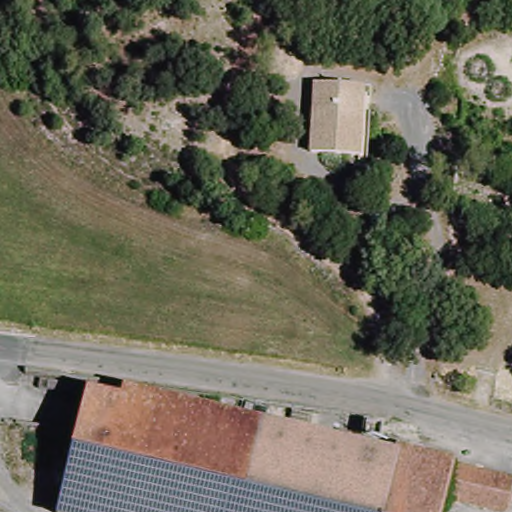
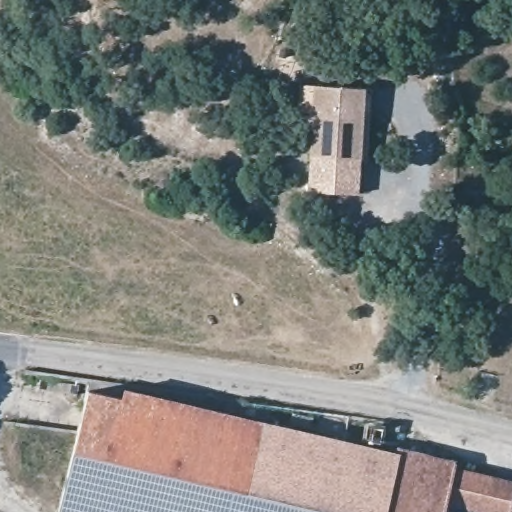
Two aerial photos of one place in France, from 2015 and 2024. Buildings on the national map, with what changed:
unchanged [(361,160),(311,156),(316,86),(366,89),(361,160)]
new [(358,195),(306,189),(309,155),(311,156),(361,160),(358,195)]
unchanged [(415,447),(471,461),(470,467),(512,477),(512,512),(511,512),(459,500),(455,512),(71,512),(102,381),(413,456),(415,447)]

